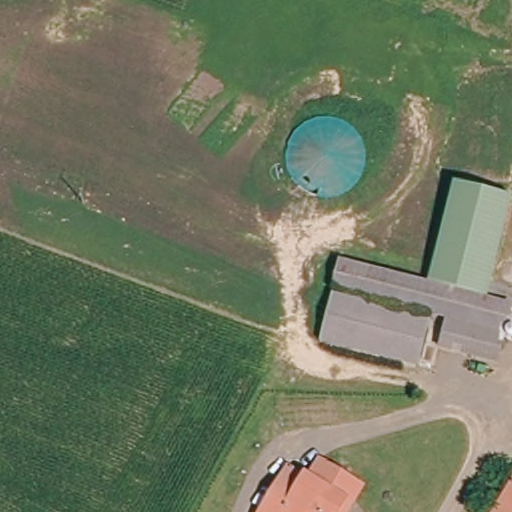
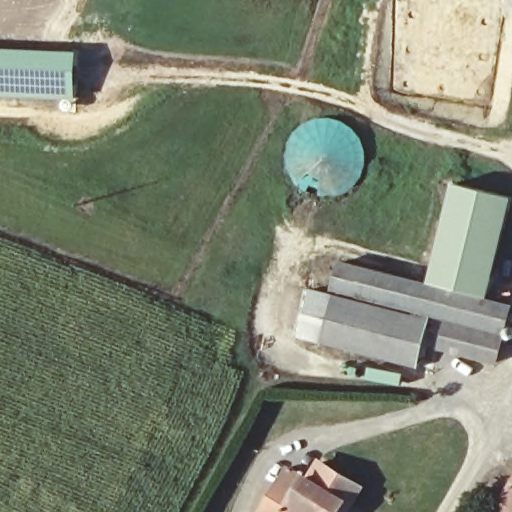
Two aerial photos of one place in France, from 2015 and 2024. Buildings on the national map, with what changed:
new [(78,52),(78,100),(0,97),(0,49),(78,52)]
demolished [(268,52),(290,73),(244,116),(224,93),(268,52)]
unchanged [(512,198),(512,212),(492,295),(430,284),(455,183),(512,198)]
unchanged [(430,284),(492,295),(511,299),(506,325),(449,313),(331,291),(335,266),(430,284)]
unchanged [(329,299),(432,319),(422,366),(322,345),(329,299)]
unchanged [(499,355),(443,344),(449,313),(506,325),(499,355)]
unchanged [(283,482),(291,469),(312,482),(315,483),(326,465),(367,491),(356,508),(353,512),(264,512),(283,482)]
unchanged [(512,499),(512,512),(504,512),(512,499)]

